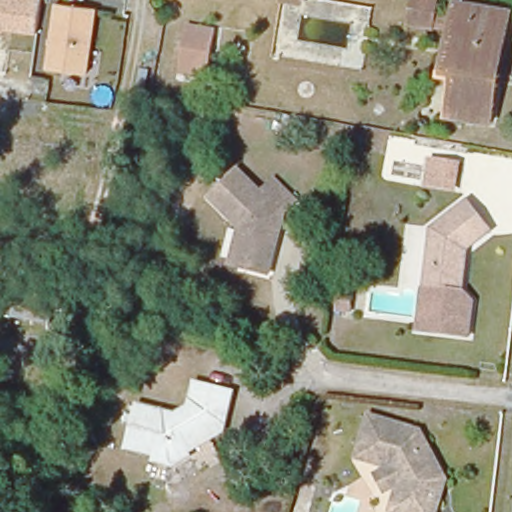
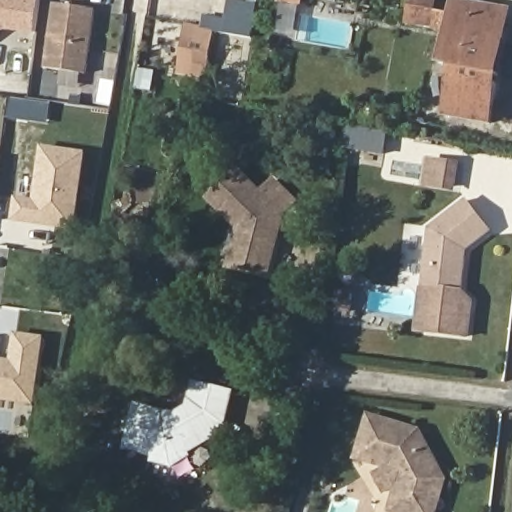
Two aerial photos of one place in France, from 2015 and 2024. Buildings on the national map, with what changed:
unchanged [(37,35),(7,30),(0,36),(0,0),(43,0),(37,35)]
unchanged [(434,22),(413,18),(416,0),(438,0),(434,22)]
unchanged [(449,110),(457,63),(445,61),(455,1),(511,10),(506,39),(500,80),(493,117),(449,110)]
unchanged [(99,9),(87,76),(45,70),(55,2),(99,9)]
unchanged [(179,66),(181,51),(186,19),(215,24),(211,55),(209,70),(179,66)]
new [(41,145),(88,152),(76,229),(12,222),(16,197),(35,200),(41,145)]
new [(0,159),(1,159),(0,171),(0,159)]
new [(430,159),(455,164),(450,192),(425,187),(430,159)]
unchanged [(240,218),(212,191),(238,165),(258,186),(273,172),(297,196),(287,206),(275,265),(241,258),(232,256),(240,218)]
unchanged [(475,252),(469,289),(478,300),(473,337),(438,331),(445,286),(430,283),(438,231),(475,199),(499,230),(475,252)]
unchanged [(350,307),(335,305),(338,288),(352,290),(350,307)]
new [(16,332),(42,335),(35,404),(0,400),(0,359),(10,360),(16,332)]
unchanged [(200,368),(237,377),(226,432),(178,462),(160,459),(161,452),(132,445),(142,402),(190,413),(200,368)]
unchanged [(391,459),(362,448),(373,411),(422,426),(446,471),(435,512),(423,512),(395,503),(402,482),(400,478),(385,486),(376,466),(391,459)]

